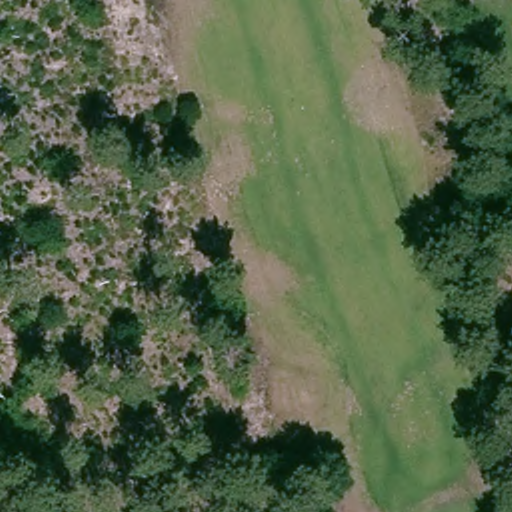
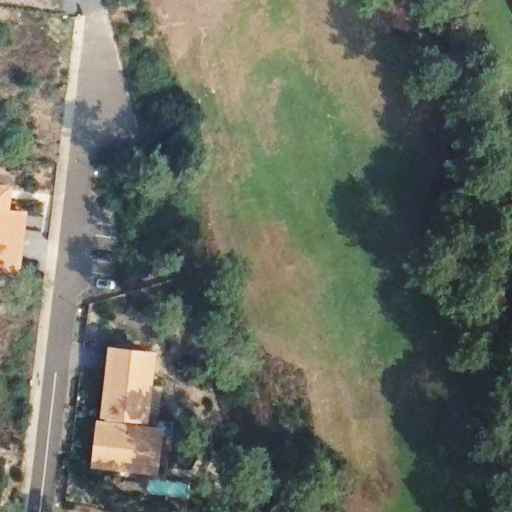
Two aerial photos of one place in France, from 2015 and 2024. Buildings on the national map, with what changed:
new [(11,210),(28,211),(22,277),(0,273),(0,183),(14,185),(11,210)]
new [(157,349),(149,426),(164,427),(160,474),(92,466),(98,419),(102,420),(103,417),(109,345),(157,349)]

